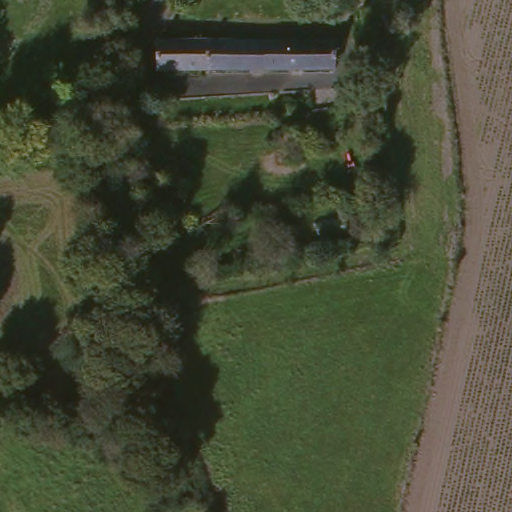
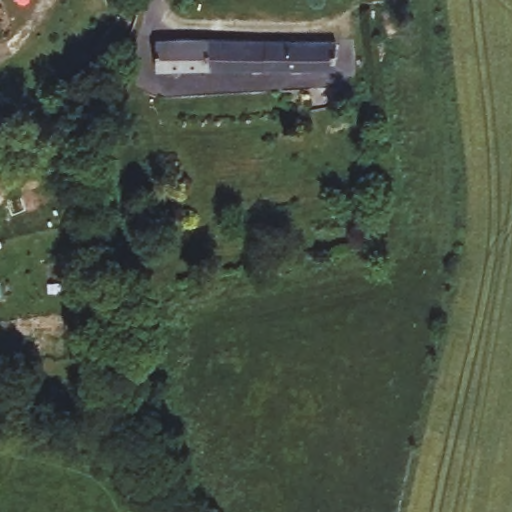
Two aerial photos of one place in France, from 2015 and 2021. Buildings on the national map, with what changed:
unchanged [(334,37),(337,69),(157,70),(158,38),(334,37)]

